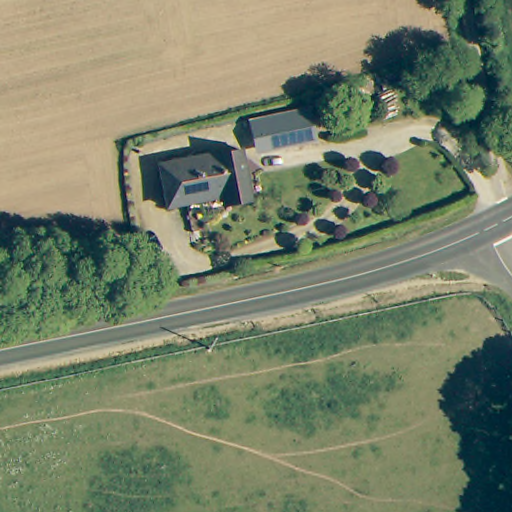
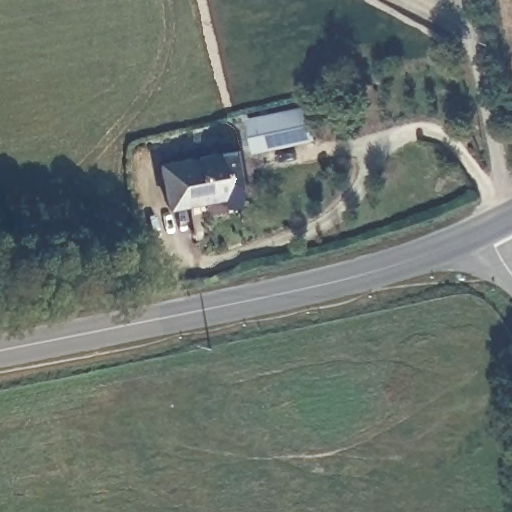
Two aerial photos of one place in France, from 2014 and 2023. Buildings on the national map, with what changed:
unchanged [(308,145),(250,156),(245,129),(304,118),(308,145)]
unchanged [(242,192),(207,199),(207,204),(188,207),(180,164),(236,155),(242,192)]

